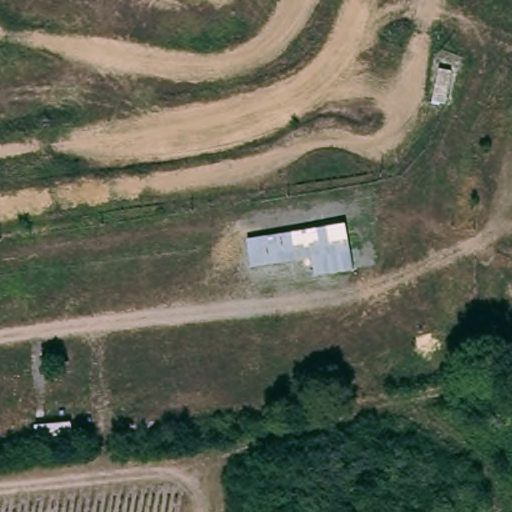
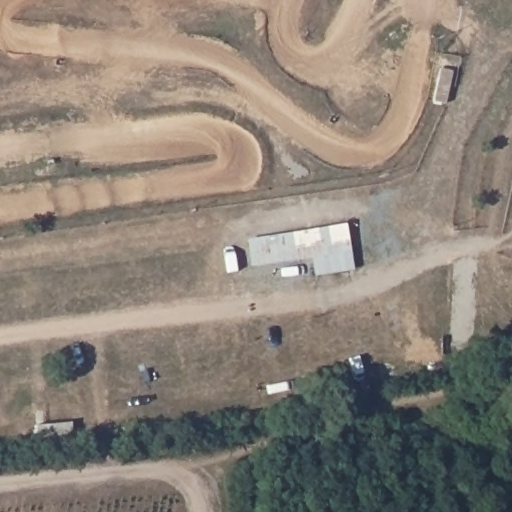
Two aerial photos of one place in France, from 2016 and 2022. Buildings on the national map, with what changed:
unchanged [(348,222),(356,273),(318,278),(315,259),(252,268),(251,239),(348,222)]

